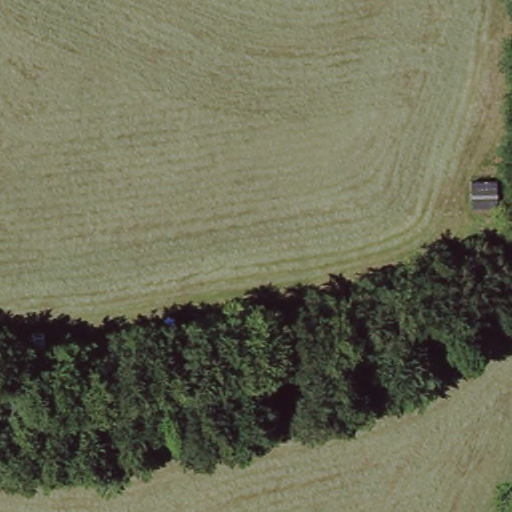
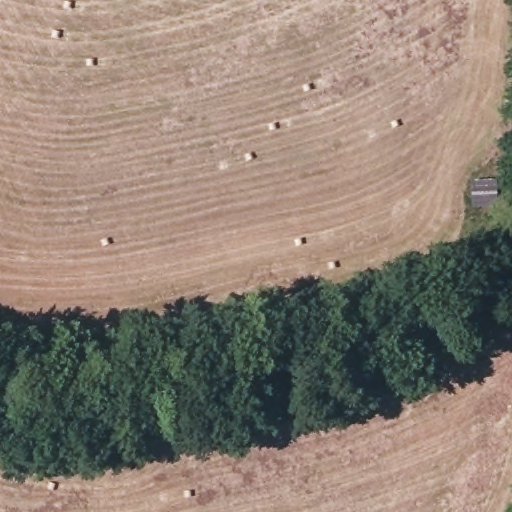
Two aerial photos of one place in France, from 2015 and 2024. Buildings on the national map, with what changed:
unchanged [(490,207),(471,210),(470,179),(487,179),(490,207)]

